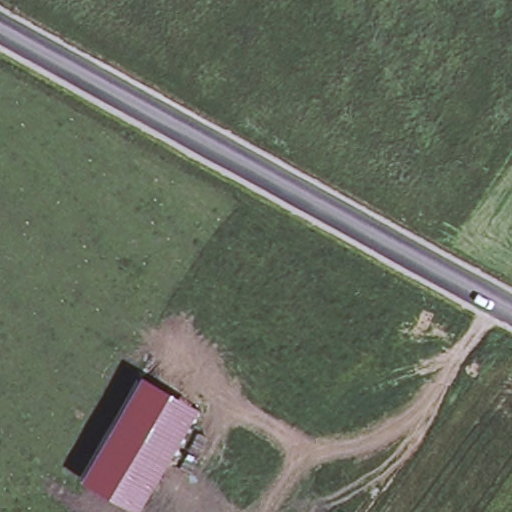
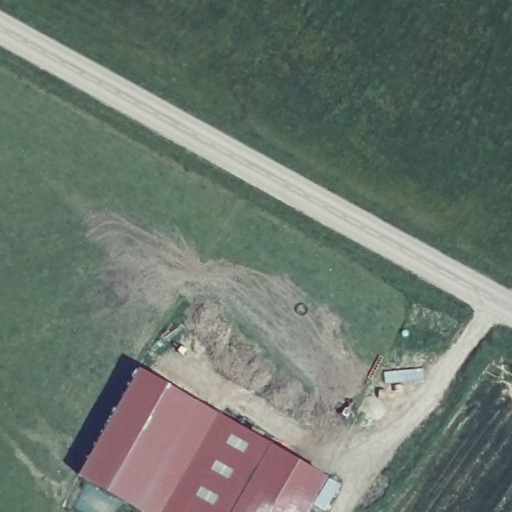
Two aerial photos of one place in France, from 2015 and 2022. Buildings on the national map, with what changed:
unchanged [(136,503),(83,473),(141,368),(197,398),(136,503)]
new [(286,445),(250,512),(153,512),(136,503),(197,398),(286,445)]

